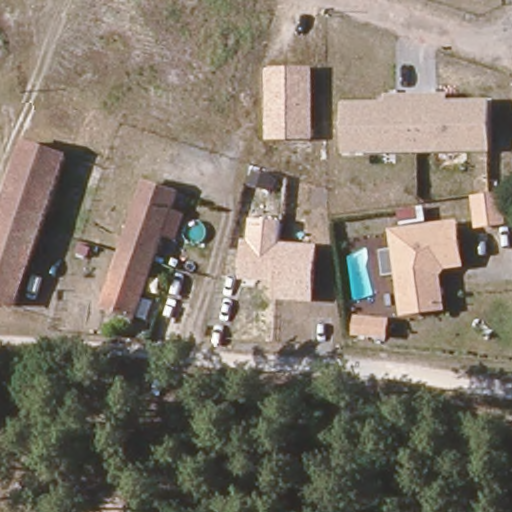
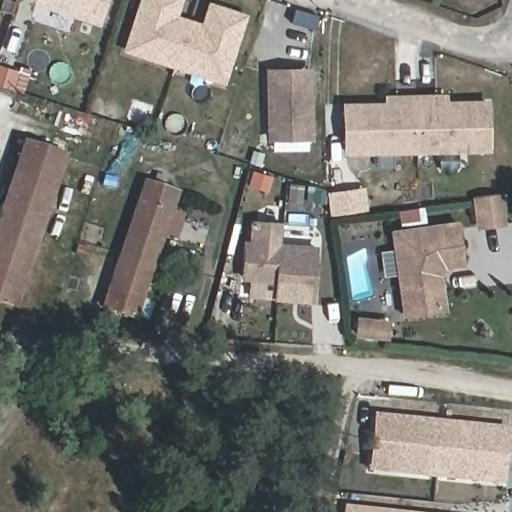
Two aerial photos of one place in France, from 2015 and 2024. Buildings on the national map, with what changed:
new [(99,23),(34,1),(34,0),(107,0),(99,23)]
new [(225,85),(123,51),(139,0),(183,0),(179,15),(202,22),(209,1),(248,13),(225,85)]
unchanged [(267,140),(264,68),(313,67),(313,139),(267,140)]
unchanged [(341,104),(384,103),(384,95),(448,93),(448,101),(490,100),(492,151),(342,157),(341,104)]
unchanged [(0,303),(0,223),(26,146),(66,159),(16,309),(0,303)]
unchanged [(135,316),(105,306),(148,182),(177,192),(135,316)]
unchanged [(502,193),(507,227),(476,231),(471,197),(502,193)]
unchanged [(458,220),(466,267),(448,270),(442,277),(448,313),(401,320),(389,229),(458,220)]
unchanged [(319,244),(315,303),(274,301),(275,280),(240,280),(243,240),(249,240),(250,221),(283,222),(281,242),(319,244)]
unchanged [(391,319),(388,342),(352,338),(354,315),(391,319)]
new [(369,473),(374,412),(509,426),(504,485),(369,473)]
new [(413,512),(344,512),(345,504),(413,512)]

